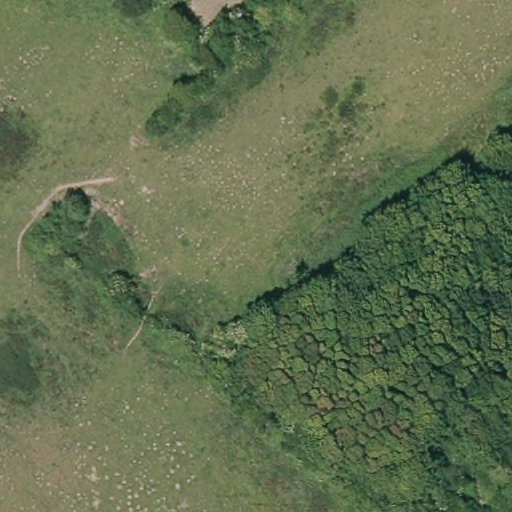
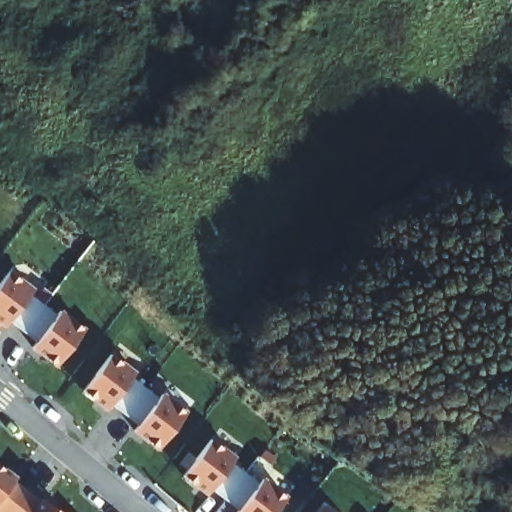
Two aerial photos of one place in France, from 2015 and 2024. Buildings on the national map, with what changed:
new [(32,289),(27,294),(57,315),(61,310),(86,330),(55,369),(30,352),(37,343),(10,322),(5,329),(0,325),(0,285),(10,273),(32,289)]
new [(135,373),(130,379),(158,399),(162,394),(187,413),(158,452),(132,434),(137,427),(110,406),(105,412),(81,394),(110,356),(135,373)]
new [(234,458),(229,464),(259,484),(262,480),(286,498),(275,512),(237,512),(211,492),(205,498),(181,481),(211,441),(234,458)]
new [(58,512),(0,512),(0,465),(58,512)]
new [(328,512),(318,512),(322,508),(328,512)]

